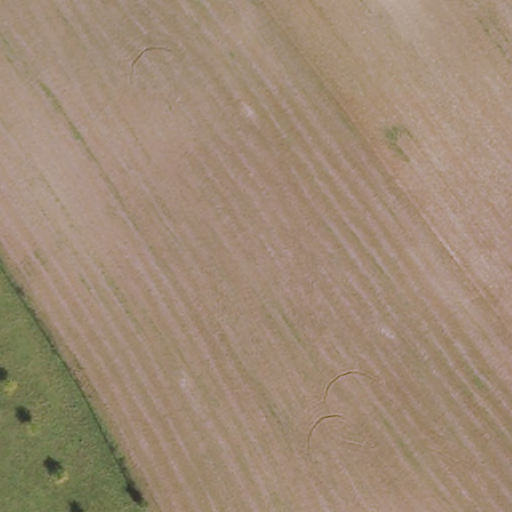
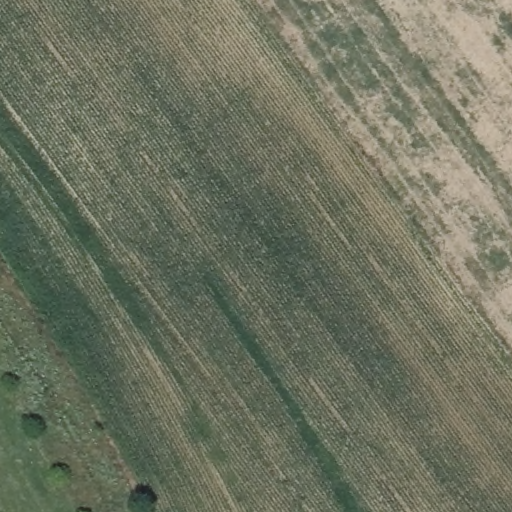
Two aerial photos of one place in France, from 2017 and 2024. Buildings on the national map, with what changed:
[]

